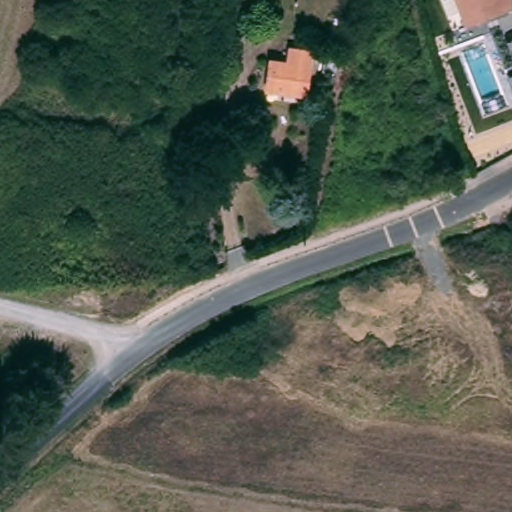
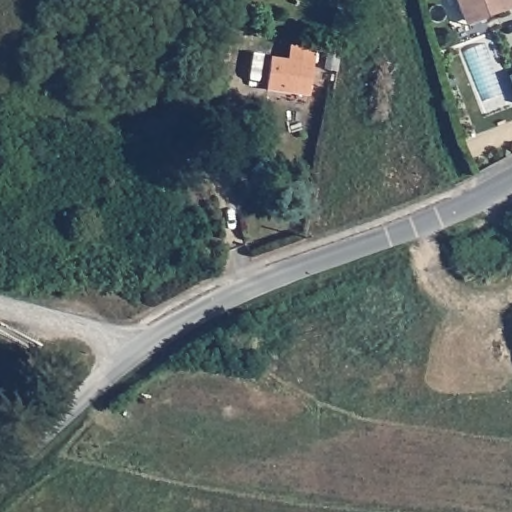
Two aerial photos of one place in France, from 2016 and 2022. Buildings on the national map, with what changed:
unchanged [(460,0),(512,0),(512,10),(490,18),(470,26),(465,14),(460,0)]
unchanged [(315,66),(320,67),(317,97),(268,89),(273,59),(292,62),(294,42),(317,47),(315,66)]

